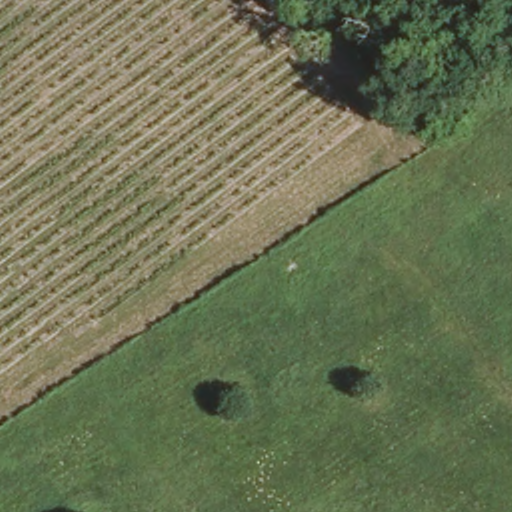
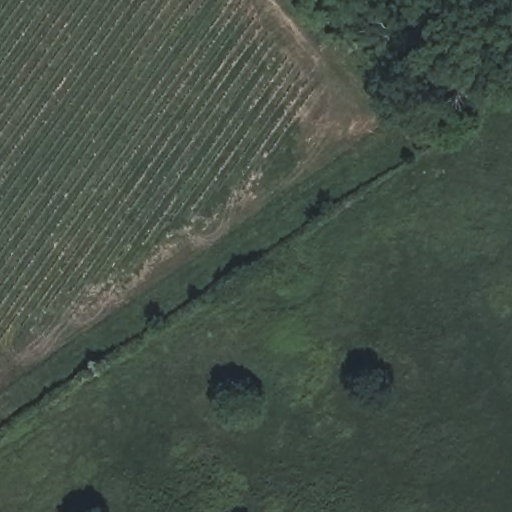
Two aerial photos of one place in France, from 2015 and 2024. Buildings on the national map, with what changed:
[]

